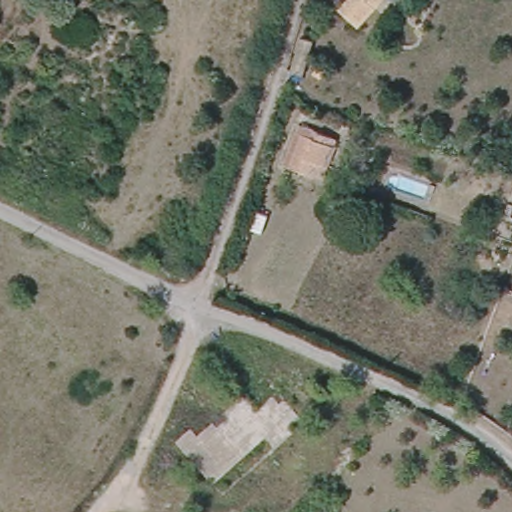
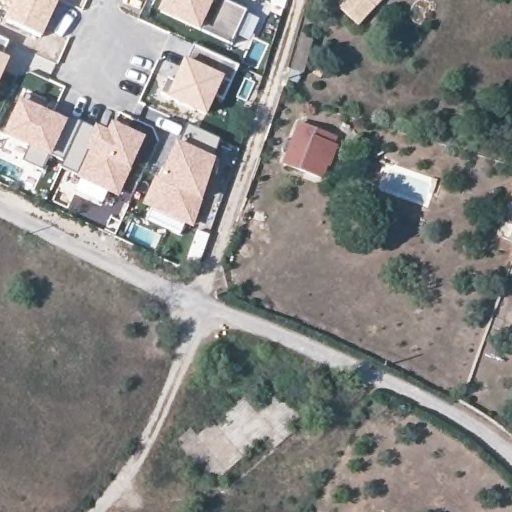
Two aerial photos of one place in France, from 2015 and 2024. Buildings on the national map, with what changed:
new [(43,38),(3,19),(7,11),(0,6),(0,0),(60,0),(43,38)]
new [(216,0),(201,31),(158,12),(164,0),(216,0)]
new [(248,44),(235,37),(232,45),(208,33),(202,30),(216,0),(229,0),(228,2),(224,0),(259,19),(248,44)]
unchanged [(334,9),(341,0),(366,0),(378,0),(372,6),(355,26),(334,9)]
new [(292,69),(303,36),(313,40),(301,72),(292,69)]
new [(3,55),(11,59),(0,82),(0,38),(9,42),(3,55)]
new [(158,75),(164,62),(179,69),(186,57),(191,46),(239,65),(232,80),(227,77),(206,115),(165,96),(171,81),(158,75)]
unchanged [(317,65),(327,69),(323,77),(314,74),(317,65)]
new [(1,135),(18,98),(69,121),(61,139),(53,156),(52,158),(50,157),(49,159),(42,170),(23,161),(29,150),(1,135)]
new [(77,175),(62,167),(65,161),(53,156),(61,139),(69,121),(72,118),(80,121),(95,128),(77,175)]
new [(95,126),(108,131),(113,122),(146,137),(118,197),(108,193),(79,179),(76,177),(95,126)]
unchanged [(329,143),(332,145),(319,175),(281,162),(297,123),(331,135),(329,143)]
new [(186,144),(188,140),(185,138),(189,127),(220,140),(214,156),(217,157),(193,228),(184,225),(150,210),(142,206),(178,140),(186,144)]

